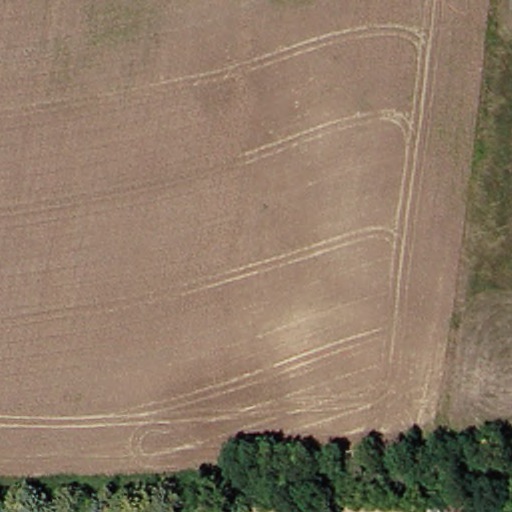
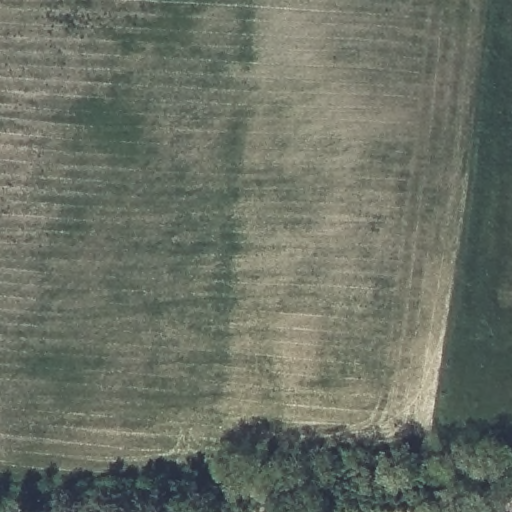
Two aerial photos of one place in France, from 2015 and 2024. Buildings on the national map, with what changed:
[]

